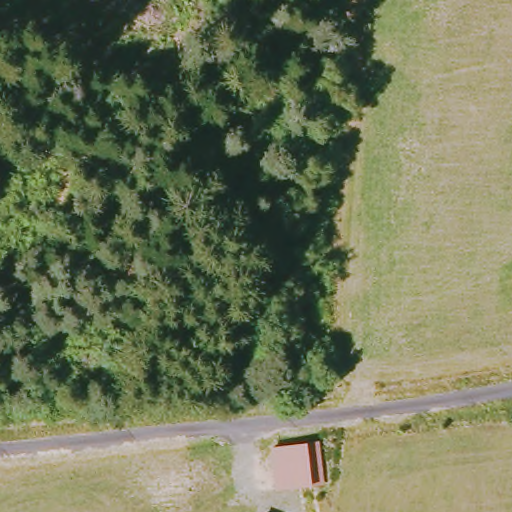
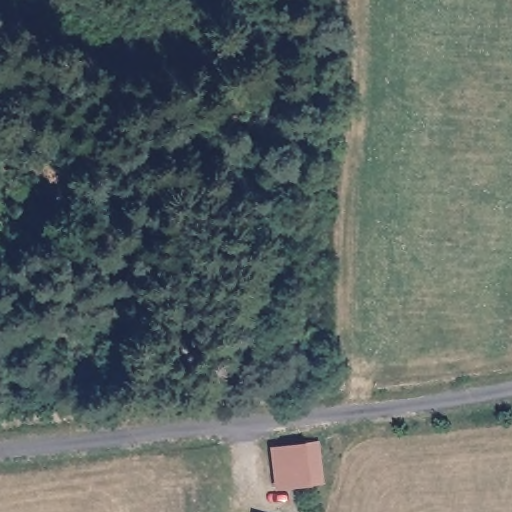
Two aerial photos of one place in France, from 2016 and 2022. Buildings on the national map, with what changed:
unchanged [(306,442),(319,441),(324,485),(312,486),(274,491),(270,446),(306,442)]

